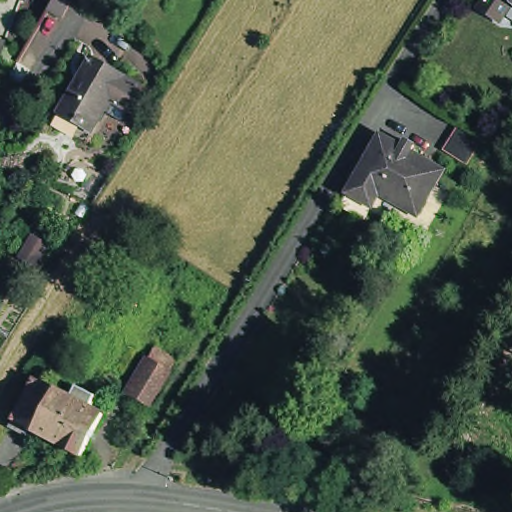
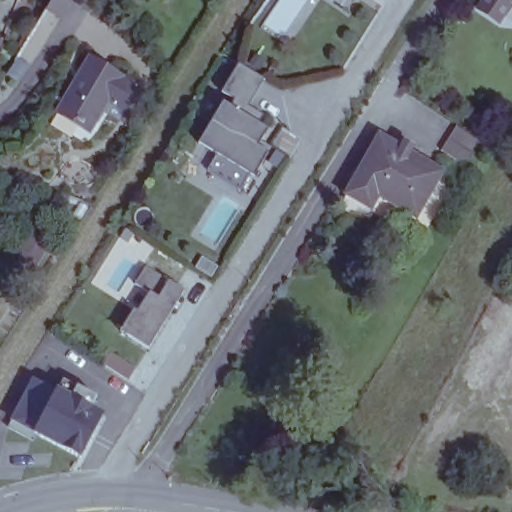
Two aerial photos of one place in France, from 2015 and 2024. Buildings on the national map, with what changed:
unchanged [(487,0),(512,0),(512,8),(500,26),(479,12),(487,0)]
unchanged [(82,121),(80,124),(75,120),(76,117),(58,107),(88,55),(120,74),(90,126),(82,121)]
new [(252,174),(243,190),(210,171),(220,155),(201,144),(222,109),(229,113),(237,99),(225,92),(241,64),(267,79),(251,106),(266,115),(258,129),(268,135),(264,142),(274,147),(271,152),(260,170),(257,177),(252,174)]
unchanged [(445,148),(462,121),(485,136),(469,163),(445,148)]
unchanged [(338,207),(347,193),(345,192),(377,137),(387,142),(388,140),(400,147),(404,139),(412,143),(407,151),(440,169),(414,213),(377,192),(372,202),(375,204),(365,220),(345,209),(344,211),(338,207)]
unchanged [(38,276),(15,261),(37,228),(55,242),(38,276)]
new [(135,310),(140,312),(152,293),(137,284),(147,267),(187,291),(150,349),(122,331),(135,310)]
demolished [(148,410),(132,400),(154,366),(148,363),(156,351),(165,357),(158,369),(170,376),(148,410)]
unchanged [(73,398),(80,387),(98,396),(92,407),(104,413),(82,455),(38,433),(35,439),(22,432),(11,426),(35,381),(49,388),(58,392),(59,390),(73,398)]

